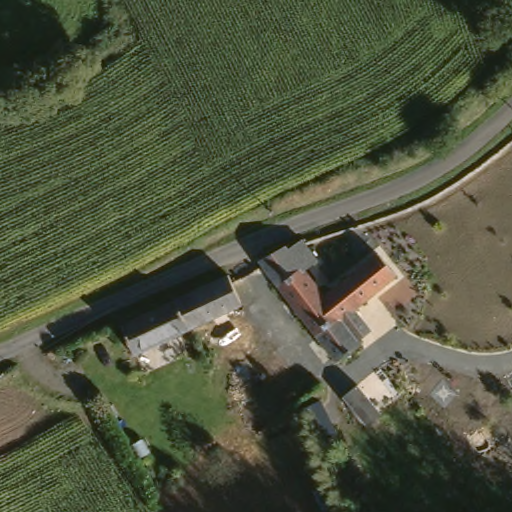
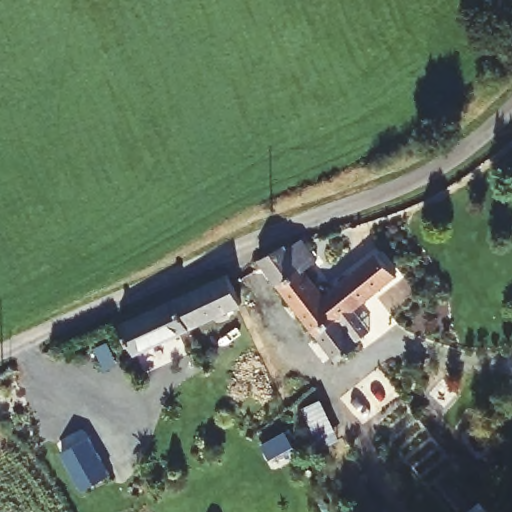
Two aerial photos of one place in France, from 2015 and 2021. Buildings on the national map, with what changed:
unchanged [(273,294),(256,276),(277,255),(279,255),(285,262),(297,251),(314,268),(303,280),(320,300),(374,263),(387,280),(339,318),(358,339),(338,358),(276,291),(273,294)]
unchanged [(118,329),(228,281),(239,309),(131,357),(118,329)]
new [(59,453),(89,437),(110,476),(81,492),(59,453)]

